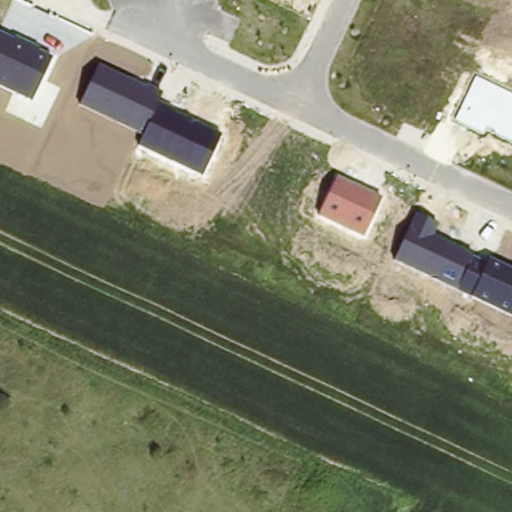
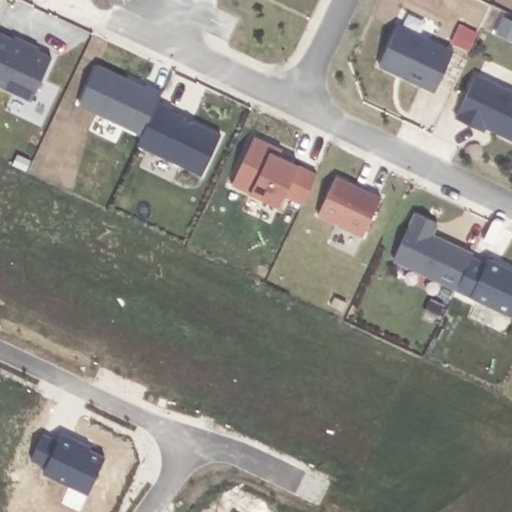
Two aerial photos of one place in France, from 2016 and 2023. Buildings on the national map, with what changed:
new [(399,24),(455,51),(437,94),(381,67),(399,24)]
unchanged [(15,37),(40,48),(39,51),(54,58),(32,103),(0,88),(0,33),(14,40),(15,37)]
unchanged [(146,87),(147,85),(162,93),(157,104),(142,136),(78,106),(97,65),(146,87)]
unchanged [(477,74),(512,91),(512,140),(487,128),(485,133),(455,118),(477,74)]
unchanged [(142,136),(157,104),(222,135),(202,178),(138,146),(142,136)]
new [(254,136),(284,150),(282,156),(300,165),(320,174),(305,205),(285,196),(280,208),(250,195),(231,184),(254,136)]
unchanged [(382,197),(362,239),(317,217),(337,176),(382,197)]
unchanged [(440,225),(434,236),(474,255),(473,258),(487,263),(489,258),(512,269),(512,317),(512,318),(392,262),(414,214),(440,225)]

